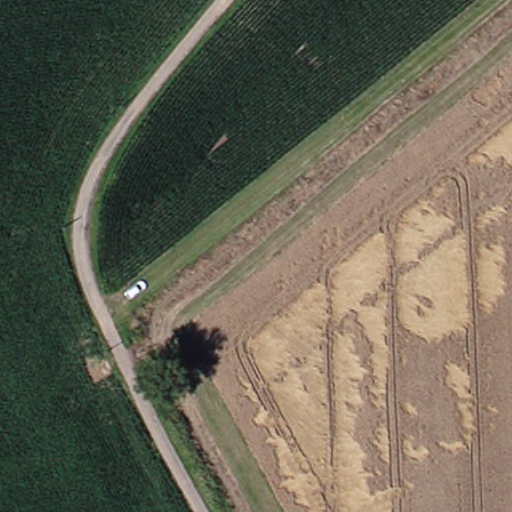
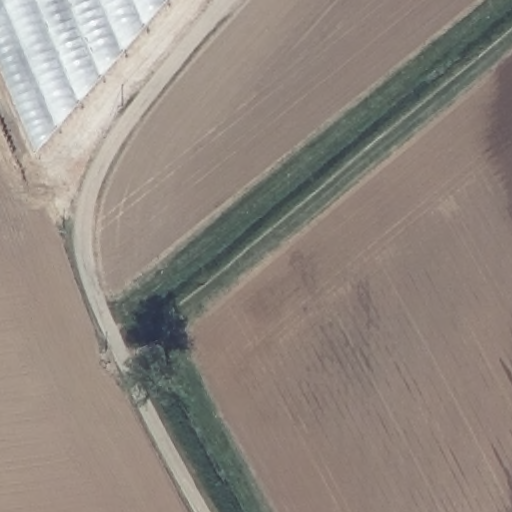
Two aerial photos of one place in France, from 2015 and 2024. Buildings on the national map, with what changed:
new [(39,152),(0,60),(0,0),(170,0),(39,152)]

